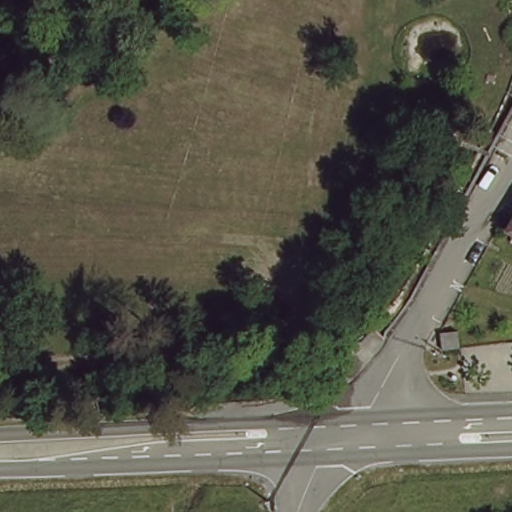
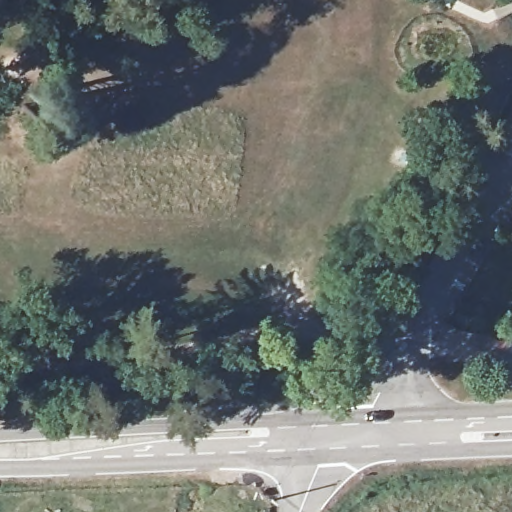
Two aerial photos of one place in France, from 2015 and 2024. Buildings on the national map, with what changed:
unchanged [(512,217),(512,231),(506,228),(512,217)]
unchanged [(461,348),(446,350),(444,333),(459,331),(461,348)]

